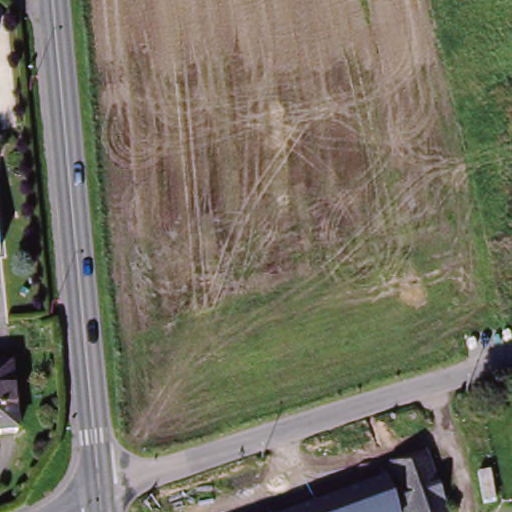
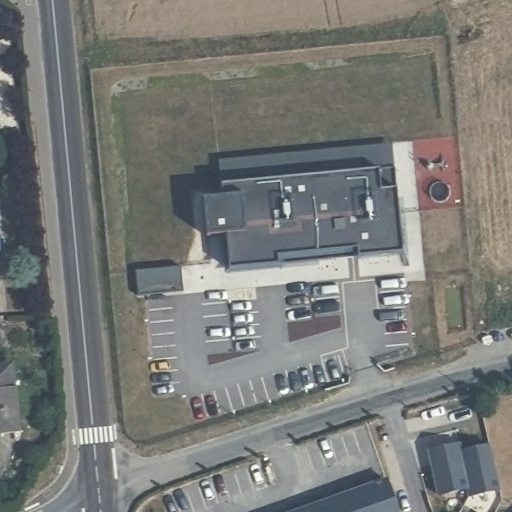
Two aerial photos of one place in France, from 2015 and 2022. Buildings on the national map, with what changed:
new [(390,145),(392,169),(340,174),(340,170),(307,172),(307,177),(224,185),(221,161),(390,145)]
new [(222,197),(220,185),(224,185),(307,177),(307,172),(340,170),(340,174),(392,169),(395,169),(403,252),(359,256),(357,249),(335,251),(336,259),(229,270),(225,235),(207,237),(203,199),(222,197)]
new [(181,267),(184,292),(139,297),(136,272),(181,267)]
unchanged [(18,432),(0,434),(0,368),(12,366),(18,432)]
new [(497,485),(467,492),(465,484),(436,490),(427,446),(457,440),(459,447),(487,441),(497,485)]
unchanged [(405,512),(288,512),(393,476),(405,512)]

